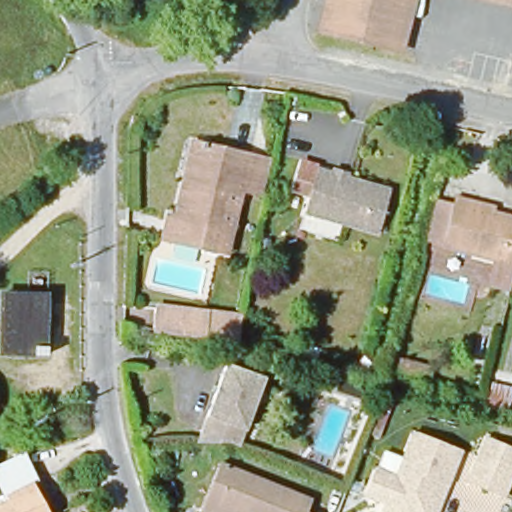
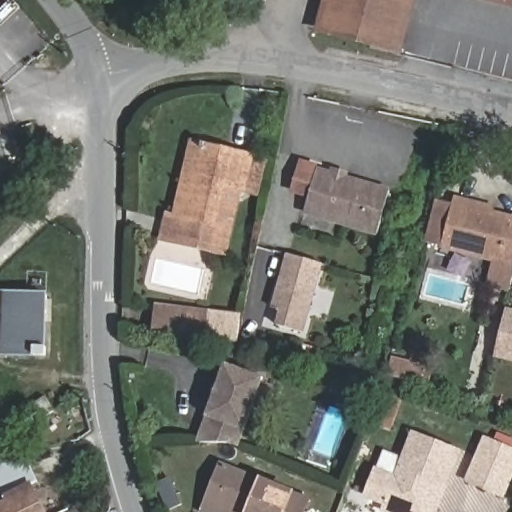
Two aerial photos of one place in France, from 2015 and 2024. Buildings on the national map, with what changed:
unchanged [(402,44),(327,26),(334,0),(414,0),(402,44)]
unchanged [(133,116),(145,120),(141,131),(129,128),(133,116)]
unchanged [(212,252),(164,240),(170,212),(177,214),(194,143),(255,157),(271,161),(264,196),(247,192),(231,256),(212,252)]
unchanged [(381,235),(309,213),(321,172),(394,193),(381,235)]
unchanged [(489,284),(495,261),(444,248),(427,243),(438,200),(455,205),(512,218),(512,284),(510,290),(489,284)]
new [(277,297),(281,298),(282,292),(280,291),(290,257),(324,268),(303,336),(277,328),(282,314),(274,310),(277,297)]
unchanged [(48,296),(48,315),(44,314),(43,347),(47,348),(46,357),(0,355),(2,294),(48,296)]
new [(506,307),(512,308),(512,363),(495,359),(506,307)]
unchanged [(241,323),(238,334),(160,326),(161,314),(241,323)]
unchanged [(393,360),(434,370),(430,387),(389,377),(393,360)]
unchanged [(242,447),(198,445),(228,365),(265,379),(242,447)]
unchanged [(32,405),(45,397),(55,412),(42,420),(32,405)]
unchanged [(389,502),(369,495),(379,468),(399,476),(416,432),(463,450),(450,483),(439,512),(394,512),(386,509),(389,502)]
unchanged [(512,478),(505,496),(468,482),(484,438),(512,449),(512,478)]
unchanged [(0,488),(0,465),(24,453),(37,479),(29,483),(44,512),(0,512),(0,505),(6,502),(0,488)]
unchanged [(242,512),(238,511),(238,512),(212,512),(198,507),(216,460),(226,463),(319,502),(315,512),(242,512)]

